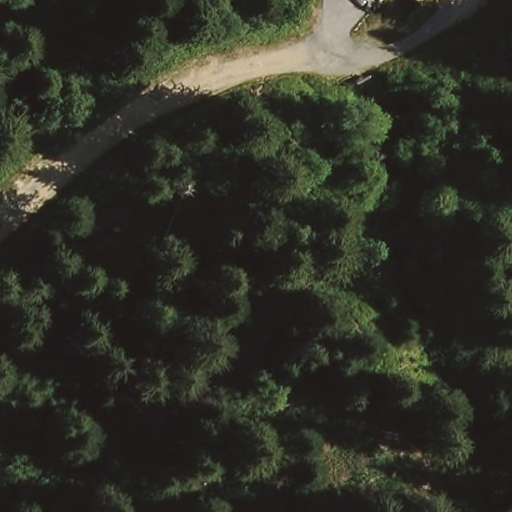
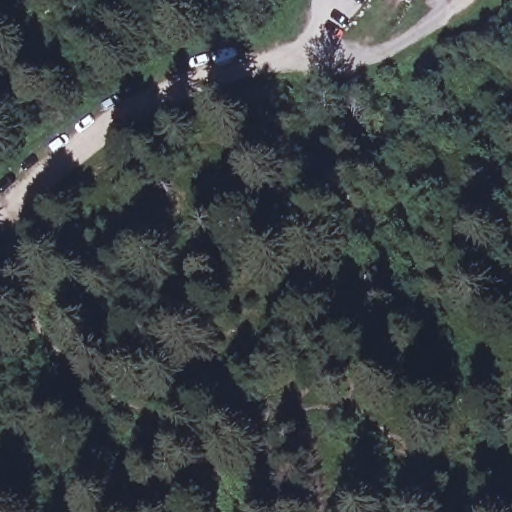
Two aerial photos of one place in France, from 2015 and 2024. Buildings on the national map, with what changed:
unchanged [(413,4),(407,0),(415,0),(413,4)]

